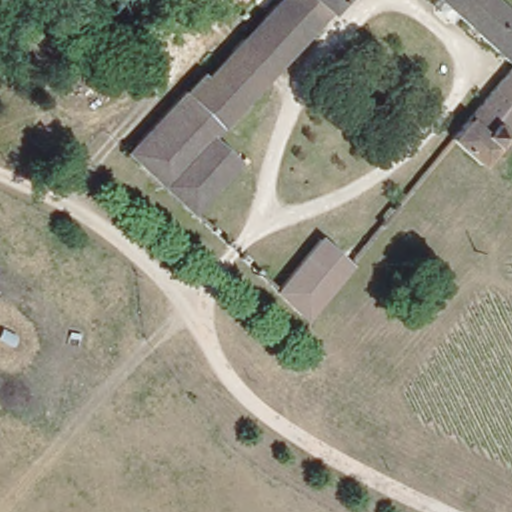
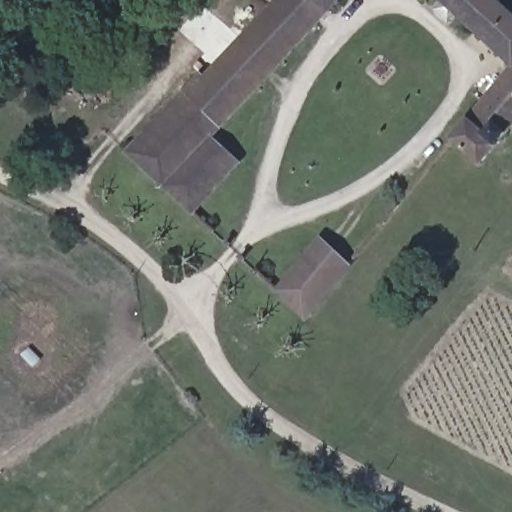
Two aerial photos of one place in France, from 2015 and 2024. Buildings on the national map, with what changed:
unchanged [(240,163),(193,215),(126,152),(201,74),(204,77),(277,0),(341,0),(211,137),(240,163)]
unchanged [(512,127),(479,166),(450,140),(511,66),(439,0),(495,0),(512,15),(512,127)]
unchanged [(351,267),(306,321),(276,292),(320,238),(351,267)]

